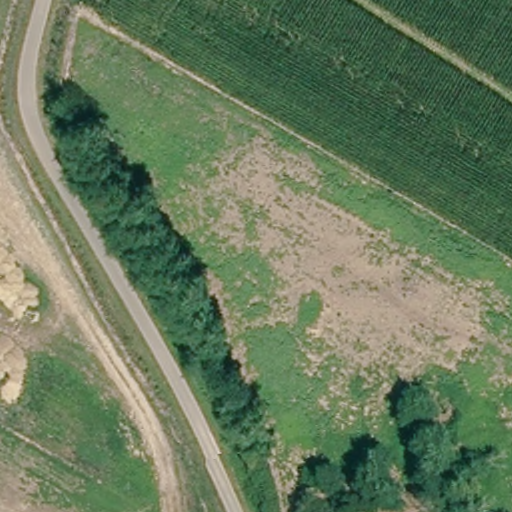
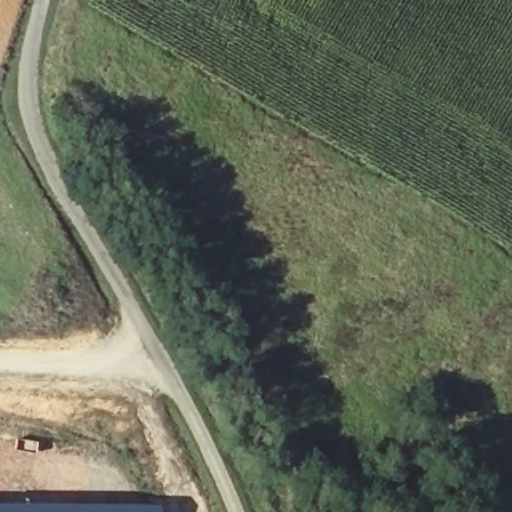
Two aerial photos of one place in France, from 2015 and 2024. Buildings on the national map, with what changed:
new [(152,512),(0,512),(0,504),(153,506),(152,512)]

